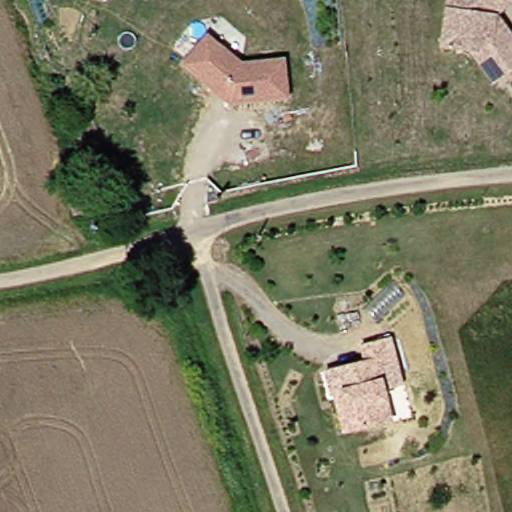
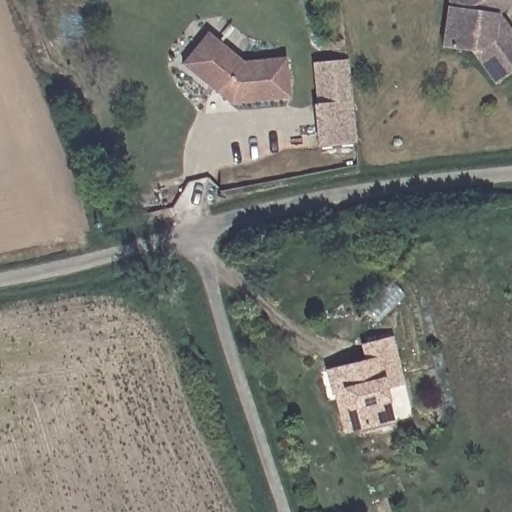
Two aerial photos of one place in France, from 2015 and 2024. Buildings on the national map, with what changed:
unchanged [(479,0),(512,0),(512,2),(502,9),(512,24),(512,66),(497,76),(476,44),(444,41),(447,4),(479,6),(479,0)]
unchanged [(479,0),(479,6),(447,4),(447,0),(479,0)]
unchanged [(285,65),(288,104),(232,107),(194,62),(185,49),(217,29),(226,41),(242,68),(285,65)]
new [(348,59),(356,142),(319,145),(311,62),(348,59)]
unchanged [(340,396),(334,372),(370,361),(366,348),(398,338),(402,356),(384,361),(399,423),(365,433),(350,437),(340,396)]

